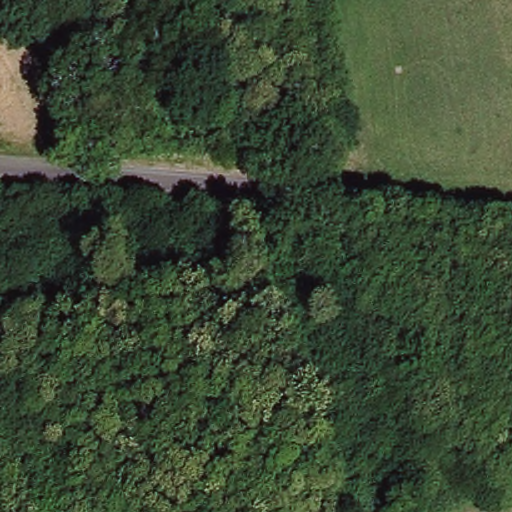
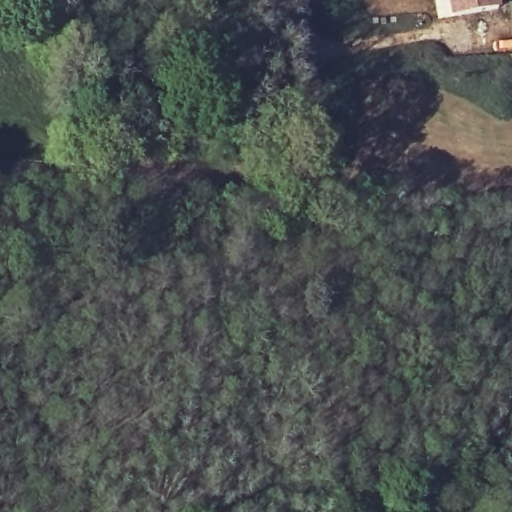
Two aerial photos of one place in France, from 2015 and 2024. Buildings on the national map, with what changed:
new [(499,5),(441,14),(439,0),(498,0),(499,5)]
unchanged [(500,498),(498,481),(512,480),(512,496),(500,498)]

